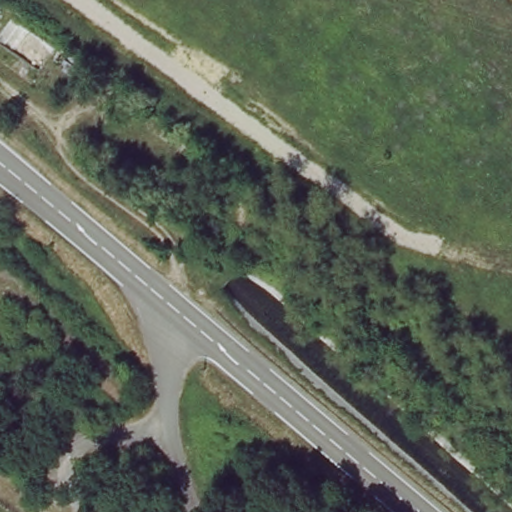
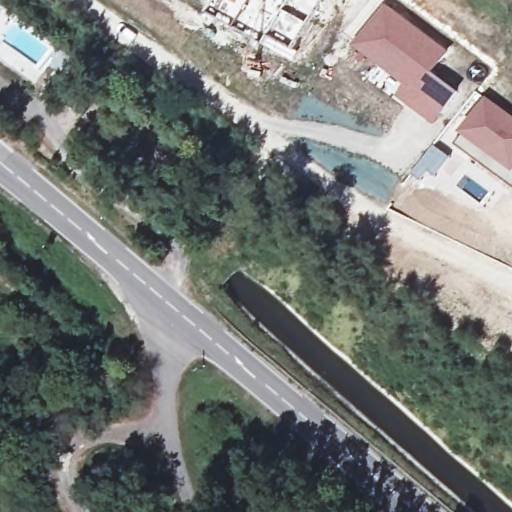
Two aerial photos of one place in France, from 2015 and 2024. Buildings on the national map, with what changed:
new [(429,73),(455,92),(435,121),(409,104),(417,90),(356,46),(385,8),(445,53),(429,73)]
new [(457,145),(465,135),(462,132),(488,99),(512,117),(512,187),(457,145)]

